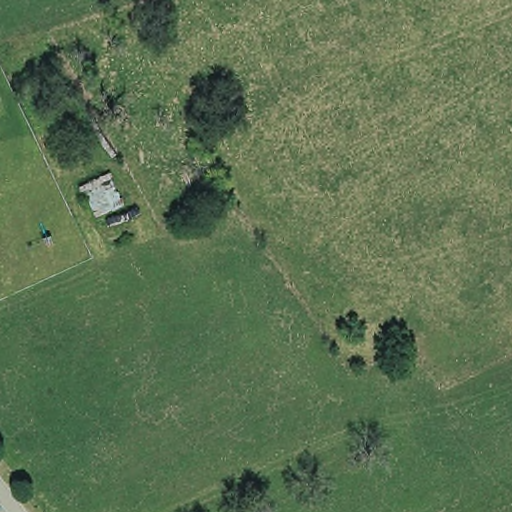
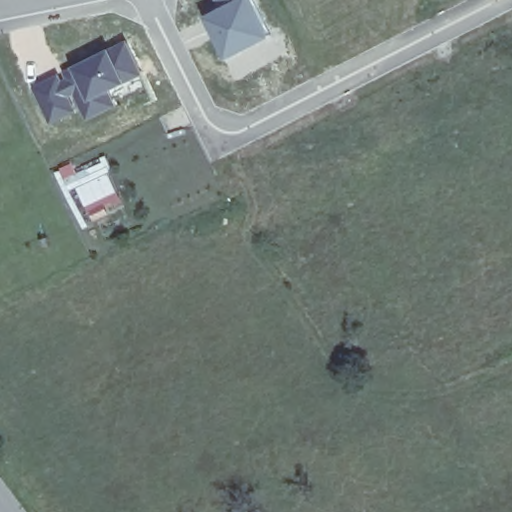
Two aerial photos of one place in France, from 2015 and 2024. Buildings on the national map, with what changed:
new [(220,7),(233,0),(255,0),(274,36),(228,59),(205,15),(220,7)]
new [(220,7),(217,0),(233,0),(220,7)]
new [(126,39),(143,75),(111,90),(118,105),(85,120),(80,109),(49,123),(31,85),(126,39)]
new [(80,180),(78,174),(105,157),(111,169),(108,170),(118,191),(84,207),(73,185),(80,180)]

